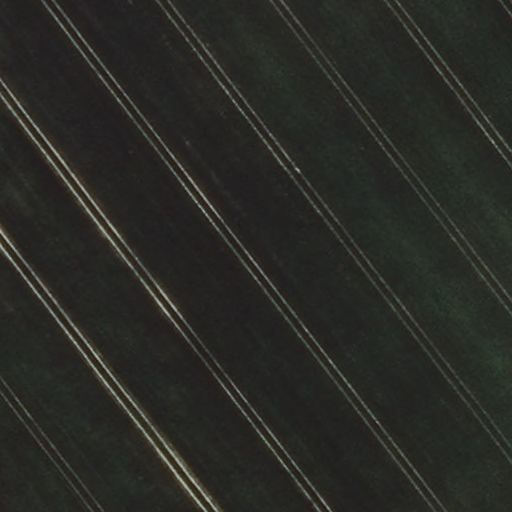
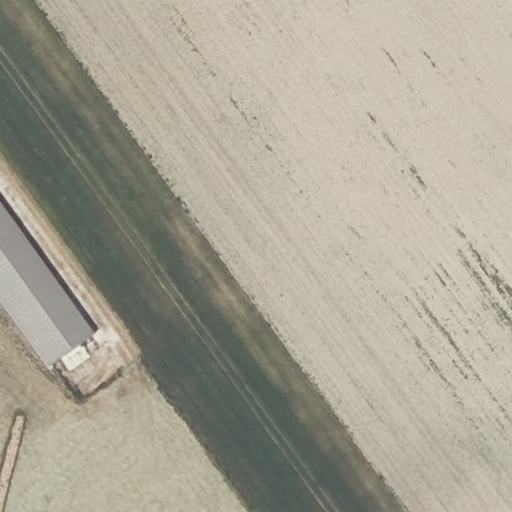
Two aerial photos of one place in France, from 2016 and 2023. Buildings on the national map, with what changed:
new [(51,368),(0,297),(0,201),(97,336),(51,368)]

